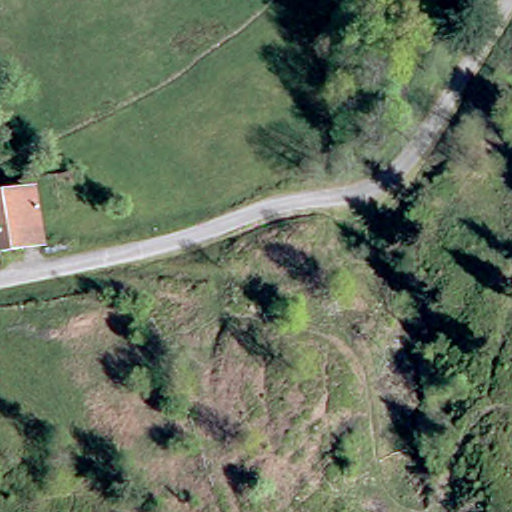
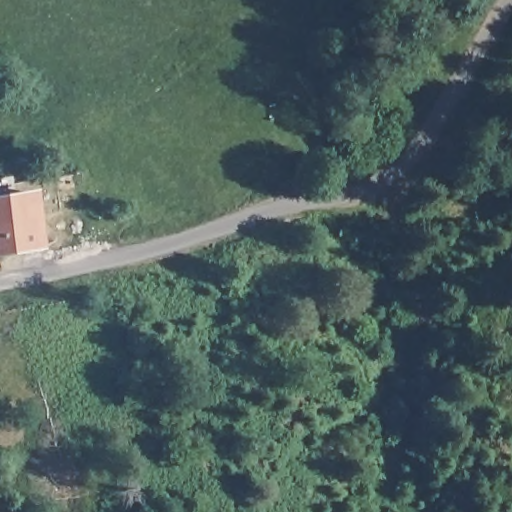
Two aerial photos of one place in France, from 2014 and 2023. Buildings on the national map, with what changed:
unchanged [(37,244),(0,249),(0,194),(30,190),(37,244)]

